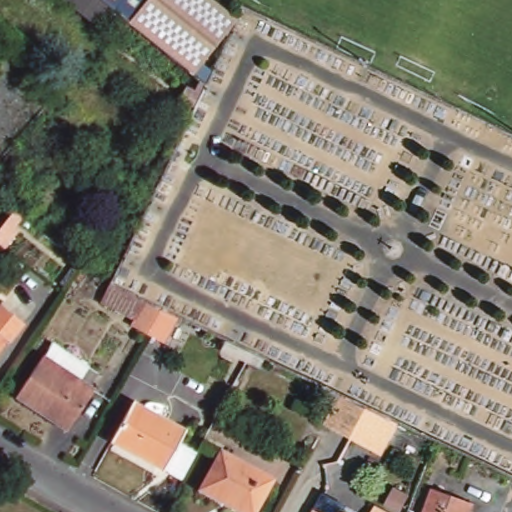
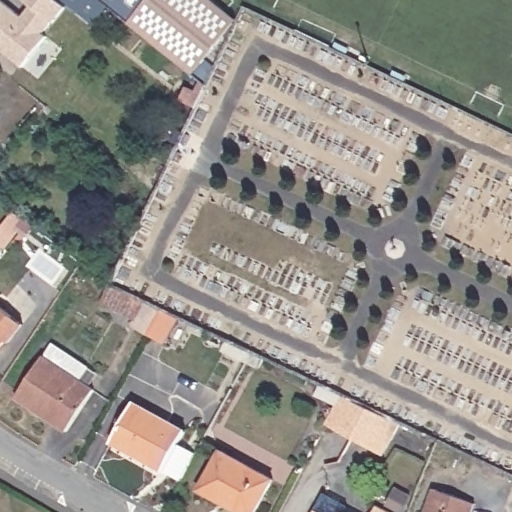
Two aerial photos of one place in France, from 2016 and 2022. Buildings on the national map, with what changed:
new [(31,4),(27,0),(59,0),(65,5),(52,20),(42,31),(46,35),(22,65),(0,47),(0,0),(3,0),(22,15),(31,4)]
unchanged [(104,0),(130,20),(115,38),(63,0),(104,0)]
unchanged [(136,25),(130,20),(104,0),(150,0),(154,3),(136,25)]
unchanged [(209,85),(136,25),(154,3),(150,0),(217,0),(242,20),(209,85)]
unchanged [(152,337),(136,328),(140,321),(107,307),(117,285),(168,308),(187,317),(170,345),(152,337)]
unchanged [(28,323),(15,341),(11,339),(0,353),(0,311),(4,305),(28,323)]
unchanged [(52,357),(60,346),(92,370),(101,377),(93,387),(99,391),(67,431),(20,395),(49,355),(52,357)]
unchanged [(361,439),(335,427),(347,406),(326,397),(331,388),(351,398),(377,410),(401,422),(407,425),(392,455),(387,451),(361,439)]
unchanged [(120,440),(141,402),(193,431),(186,444),(204,455),(191,480),(120,440)]
unchanged [(258,512),(243,512),(202,489),(224,451),(277,480),(258,512)]
unchanged [(438,490),(477,503),(474,512),(430,512),(438,490)]
unchanged [(380,508),(387,512),(378,512),(380,508)]
unchanged [(319,511),(321,512),(318,512),(319,511)]

